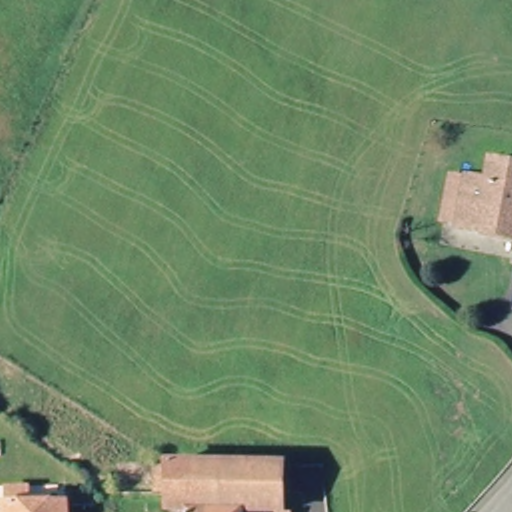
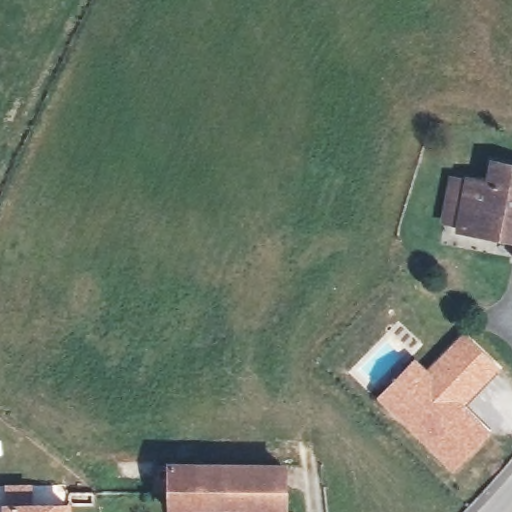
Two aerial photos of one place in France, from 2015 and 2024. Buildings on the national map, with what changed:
unchanged [(512,166),(512,239),(460,228),(470,179),(488,183),(493,162),(512,166)]
new [(426,370),(463,332),(500,367),(464,406),(491,432),(453,473),(377,396),(415,358),(426,370)]
unchanged [(170,512),(167,512),(167,493),(167,466),(280,468),(279,495),(279,512),(240,512),(183,512),(170,512)]
unchanged [(10,509),(23,490),(32,492),(41,493),(41,509),(73,509),(73,512),(0,512),(0,509),(10,509)]

